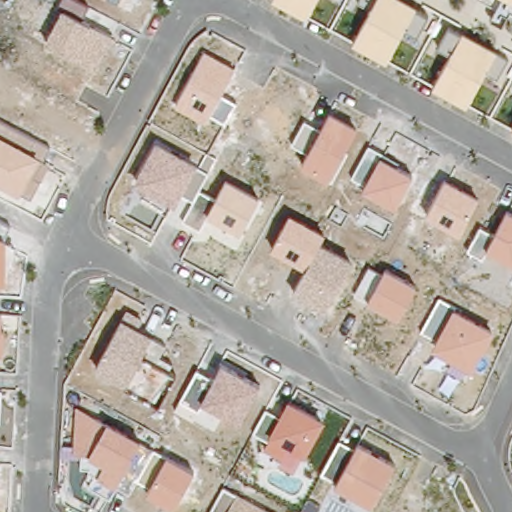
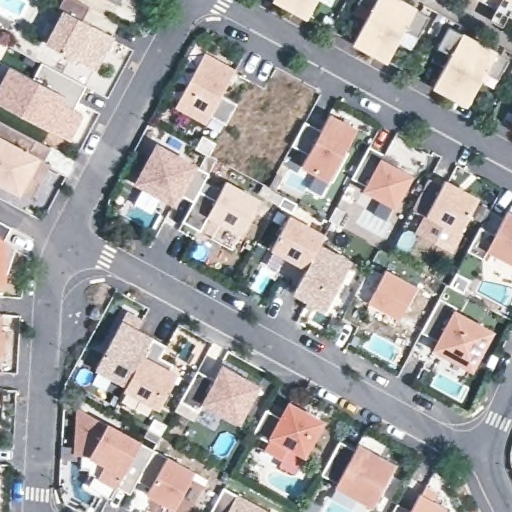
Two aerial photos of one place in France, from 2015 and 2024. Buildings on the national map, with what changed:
unchanged [(57,7),(61,0),(78,0),(89,6),(82,20),(89,24),(113,37),(97,71),(72,57),(44,42),(61,10),(57,7)]
unchanged [(109,0),(121,0),(119,5),(109,0)]
unchanged [(315,0),(305,19),(272,1),(272,0),(315,0)]
unchanged [(358,5),(360,0),(400,0),(430,15),(419,38),(403,30),(386,62),(352,44),(369,12),(358,5)]
unchanged [(510,11),(502,26),(490,20),(500,0),(512,0),(512,12),(510,11)]
unchanged [(450,55),(437,47),(450,27),(495,50),(510,58),(499,81),(484,72),(467,106),(432,89),(450,55)]
unchanged [(204,53),(235,70),(221,97),(236,104),(226,124),(210,116),(205,124),(175,107),(204,53)]
new [(69,140),(0,103),(0,74),(6,77),(12,67),(34,78),(43,62),(87,86),(78,103),(75,109),(83,114),(69,140)]
unchanged [(302,167),(308,155),(291,146),(304,122),(321,131),(329,115),(356,129),(355,129),(329,181),(302,167)]
unchanged [(41,161),(49,166),(32,200),(20,194),(0,185),(0,123),(48,147),(41,161)]
unchanged [(155,142),(196,165),(208,171),(198,192),(214,201),(225,181),(258,199),(239,235),(206,217),(199,230),(182,222),(193,201),(180,195),(175,205),(134,182),(155,142)]
unchanged [(365,186),(350,177),(368,146),(385,156),(384,160),(412,175),(394,208),(362,191),(365,186)]
unchanged [(444,180),(477,197),(460,232),(425,217),(444,180)]
unchanged [(480,228),(494,235),(505,212),(512,215),(512,264),(485,251),(481,258),(467,251),(480,228)]
unchanged [(288,216),(325,234),(320,245),(349,261),(324,310),(291,294),(304,267),(270,251),(288,216)]
unchanged [(4,239),(17,246),(6,282),(0,282),(0,220),(11,226),(4,239)]
unchanged [(369,302),(354,293),(370,267),(382,274),(385,268),(415,285),(398,317),(369,302)]
unchanged [(432,350),(436,342),(420,333),(438,302),(454,310),(494,331),(472,371),(432,350)]
unchanged [(1,332),(5,332),(5,357),(0,356),(0,311),(2,312),(1,332)]
unchanged [(121,322),(125,311),(143,320),(138,330),(151,336),(166,345),(158,362),(176,372),(158,406),(125,390),(127,387),(95,371),(121,322)]
unchanged [(198,371),(213,380),(222,364),(260,386),(239,423),(201,403),(192,421),(175,411),(198,371)]
unchanged [(0,409),(0,387),(1,387),(0,409)]
unchanged [(266,410),(279,418),(288,402),(323,421),(305,455),(293,473),(278,467),(283,460),(264,450),(269,442),(252,433),(266,410)]
unchanged [(76,407),(107,423),(138,441),(166,457),(195,472),(174,508),(147,494),(150,487),(138,480),(129,495),(116,487),(110,498),(87,487),(90,482),(89,470),(80,469),(80,452),(74,452),(76,407)]
unchanged [(340,441),(355,450),(358,443),(395,463),(372,507),(334,487),(337,482),(321,473),(340,441)]
unchanged [(222,489),(267,512),(211,512),(222,489)]
new [(396,503),(410,511),(419,493),(445,508),(443,512),(391,512),(396,503)]

